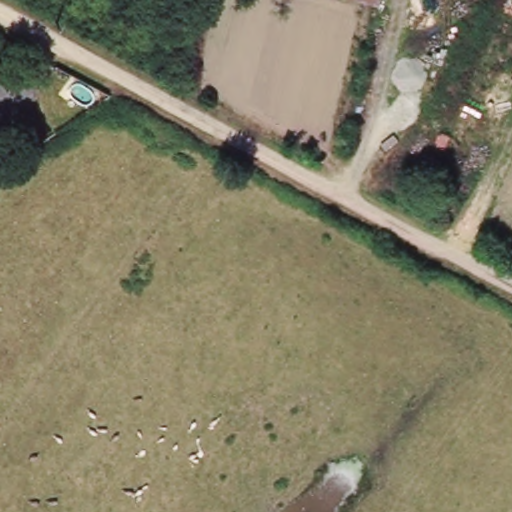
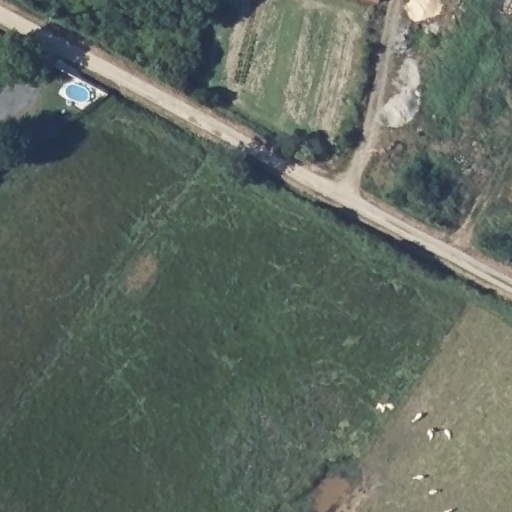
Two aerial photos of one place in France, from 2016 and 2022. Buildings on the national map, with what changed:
unchanged [(378,6),(355,0),(380,0),(378,6)]

